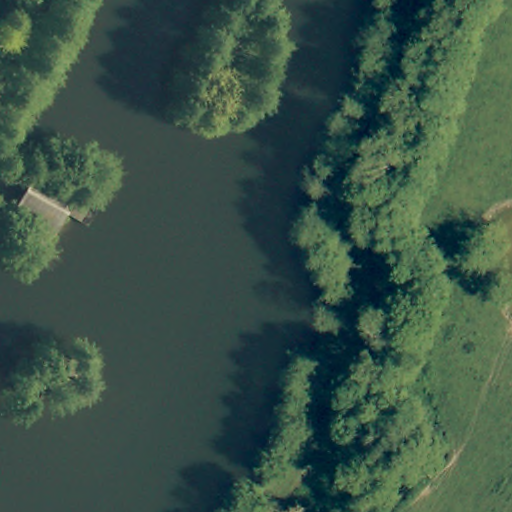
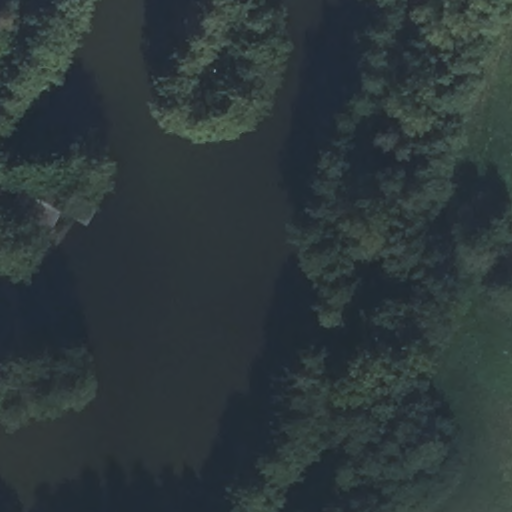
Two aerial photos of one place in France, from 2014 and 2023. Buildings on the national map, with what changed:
unchanged [(70,190),(43,234),(4,210),(31,166),(70,190)]

